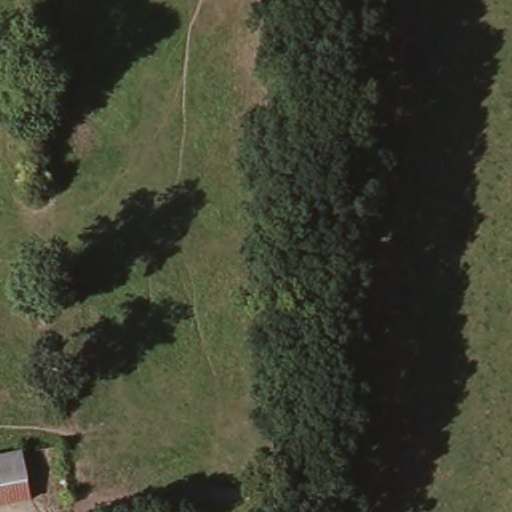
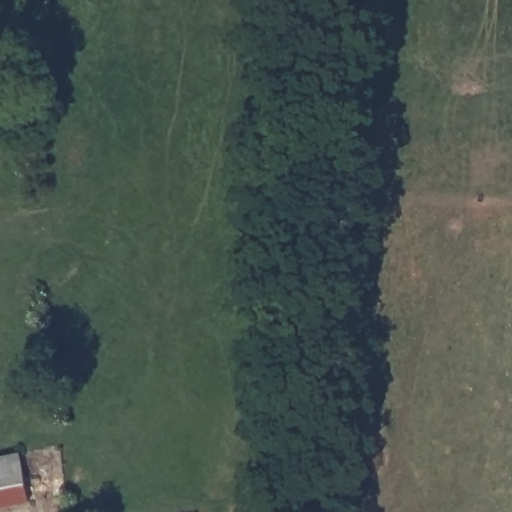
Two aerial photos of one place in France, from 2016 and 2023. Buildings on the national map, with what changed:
unchanged [(29,501),(0,506),(0,457),(20,453),(29,501)]

